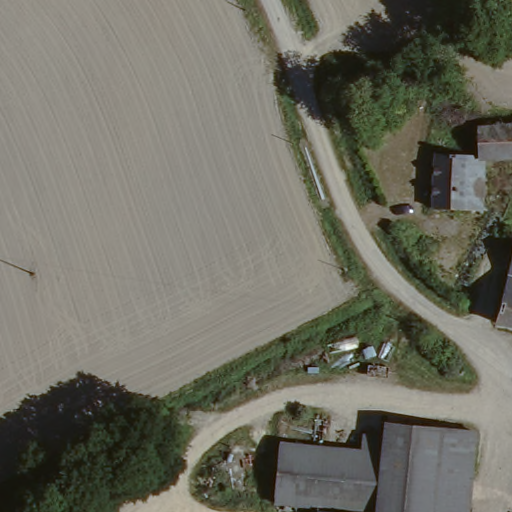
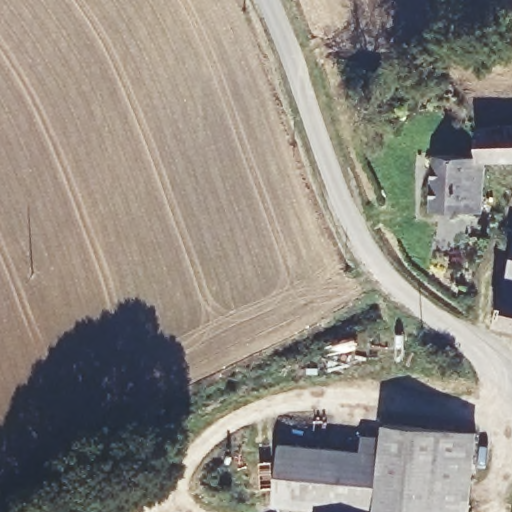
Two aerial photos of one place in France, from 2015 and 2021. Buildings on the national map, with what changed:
unchanged [(485,207),(436,205),(438,151),(481,149),(480,126),(484,125),(512,123),(512,155),(487,156),(485,207)]
unchanged [(512,248),(512,322),(496,318),(512,248)]
unchanged [(283,440),(366,448),(367,432),(385,434),(387,419),(480,428),(473,512),(379,512),(379,509),(376,508),(330,504),(318,503),(278,500),(283,440)]
unchanged [(376,508),(376,512),(318,512),(318,503),(330,504),(376,508)]

